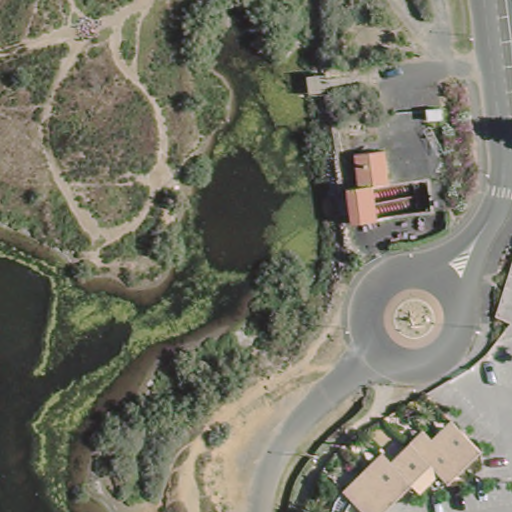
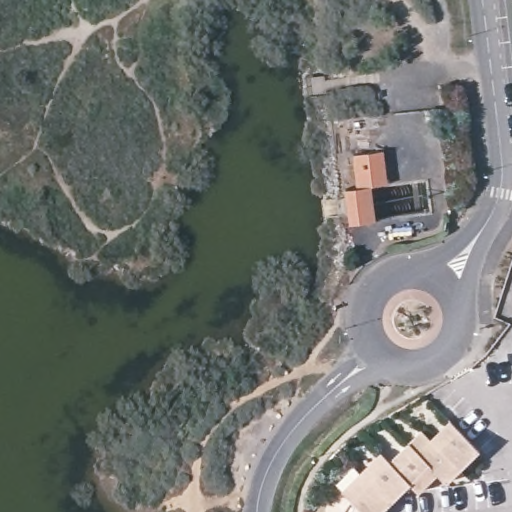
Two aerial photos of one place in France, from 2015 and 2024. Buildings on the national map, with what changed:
unchanged [(427,124),(424,111),(439,110),(440,122),(427,124)]
unchanged [(350,228),(345,192),(358,189),(352,157),(385,151),(389,187),(372,189),(377,222),(350,228)]
unchanged [(335,507),(348,492),(386,454),(395,463),(427,431),(435,439),(455,421),(484,450),(452,483),(442,474),(424,493),(415,484),(386,512),(334,512),(335,507)]

